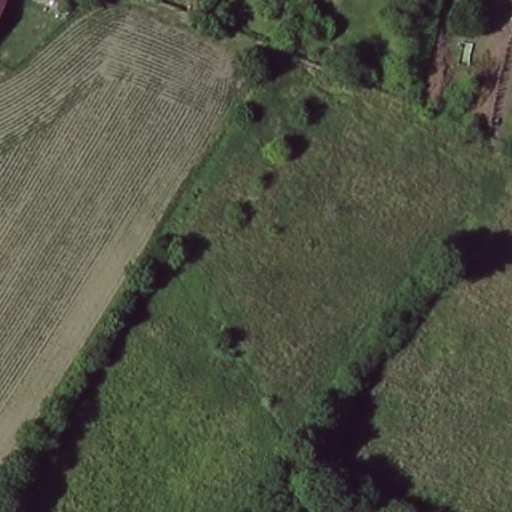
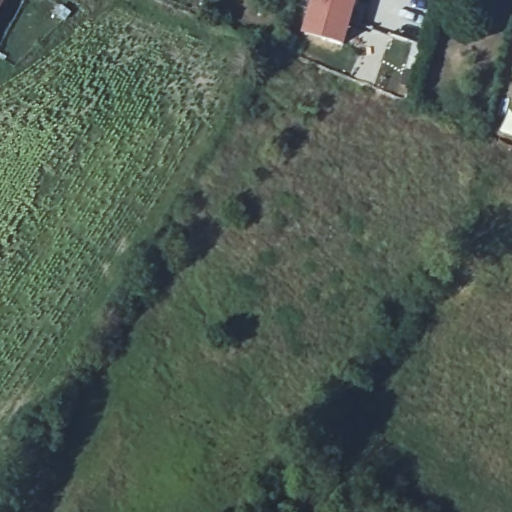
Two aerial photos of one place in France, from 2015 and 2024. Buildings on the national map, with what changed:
new [(299,35),(308,0),(355,0),(343,48),(299,35)]
unchanged [(0,14),(0,1),(5,5),(0,14)]

